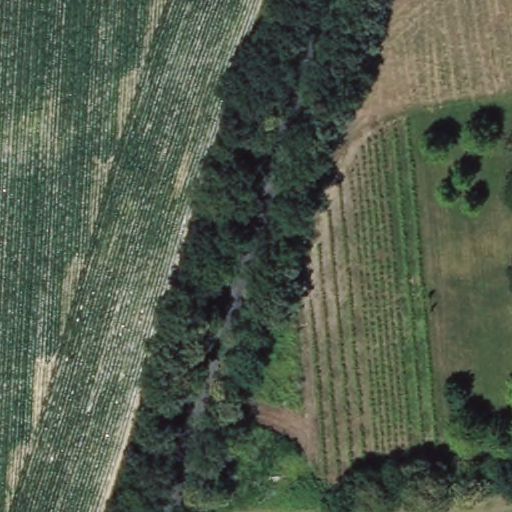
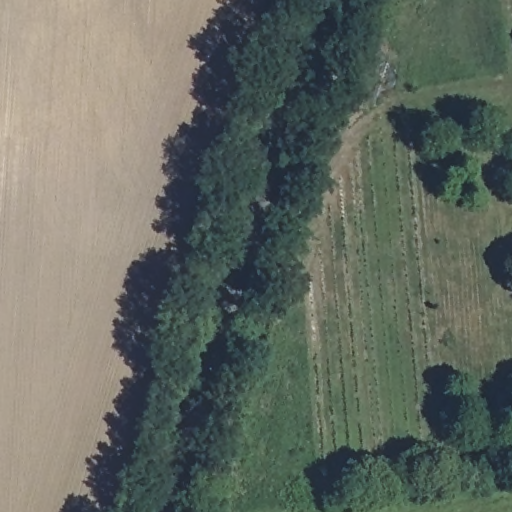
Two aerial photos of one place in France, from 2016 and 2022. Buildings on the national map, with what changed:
[]

